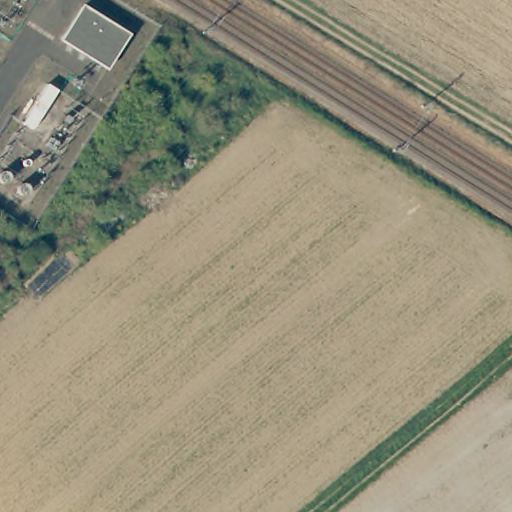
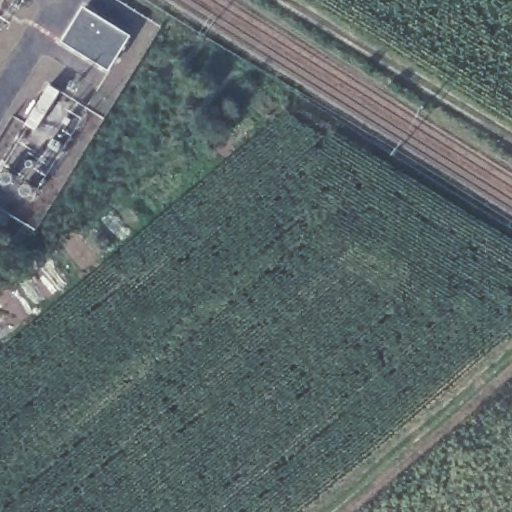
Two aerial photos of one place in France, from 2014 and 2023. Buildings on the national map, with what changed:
unchanged [(60,38),(79,5),(126,32),(106,66),(60,38)]

